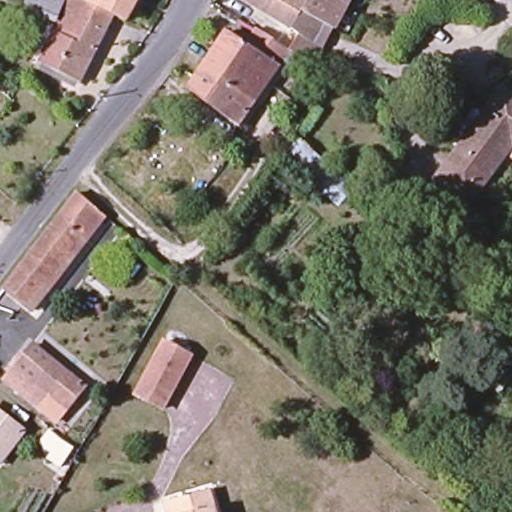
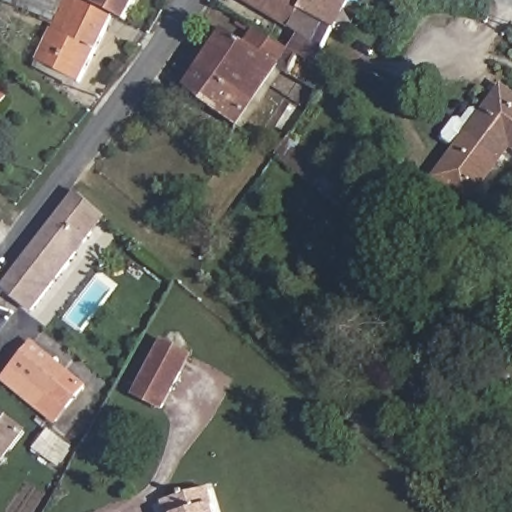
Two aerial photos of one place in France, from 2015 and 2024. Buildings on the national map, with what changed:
unchanged [(38,68),(59,24),(13,0),(45,0),(67,10),(69,7),(71,1),(113,20),(80,87),(38,68)]
unchanged [(113,20),(71,1),(72,0),(139,0),(125,26),(113,20)]
unchanged [(320,55),(285,35),(287,32),(234,0),(328,0),(343,7),(330,33),(320,55)]
unchanged [(185,92),(225,36),(243,47),(244,46),(254,33),(276,48),(295,60),(286,80),(275,72),(238,130),(185,92)]
unchanged [(467,212),(434,182),(457,150),(446,143),(460,122),(463,122),(474,111),(481,114),(501,89),(512,97),(512,154),(467,212)]
unchanged [(294,136),(336,172),(334,174),(356,192),(342,208),(279,154),(294,136)]
unchanged [(103,226),(85,247),(87,249),(66,275),(59,270),(26,313),(2,297),(76,202),(103,226)]
unchanged [(132,398),(162,343),(192,360),(162,415),(132,398)]
unchanged [(5,388),(34,352),(82,390),(66,412),(51,399),(39,416),(5,388)]
unchanged [(0,409),(22,426),(0,456),(0,409)]
unchanged [(214,512),(161,512),(159,501),(208,488),(214,512)]

